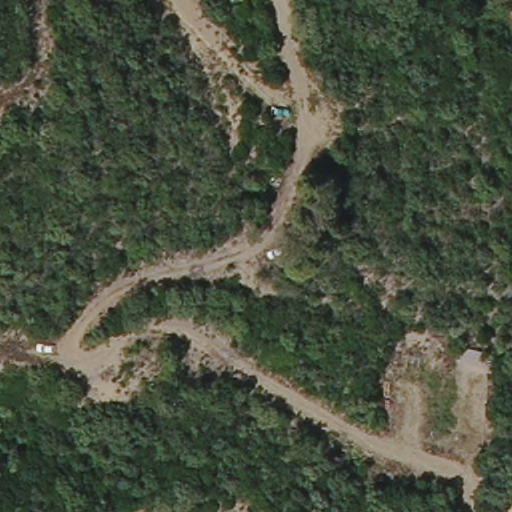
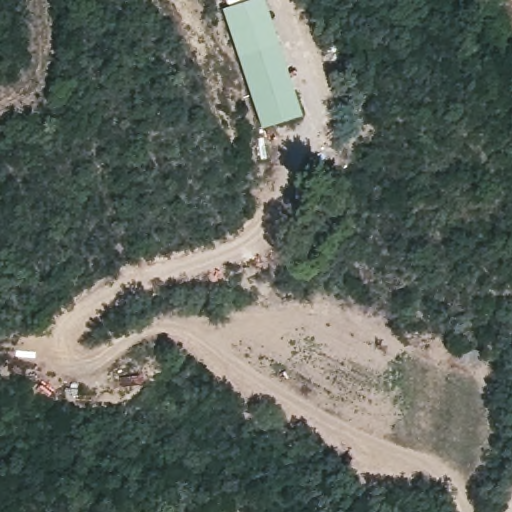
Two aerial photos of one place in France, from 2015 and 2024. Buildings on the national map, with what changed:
new [(224,0),(243,0),(226,6),(224,0)]
new [(238,55),(224,9),(252,0),(264,0),(278,44),(238,55)]
new [(300,114),(262,127),(238,55),(278,44),(300,114)]

